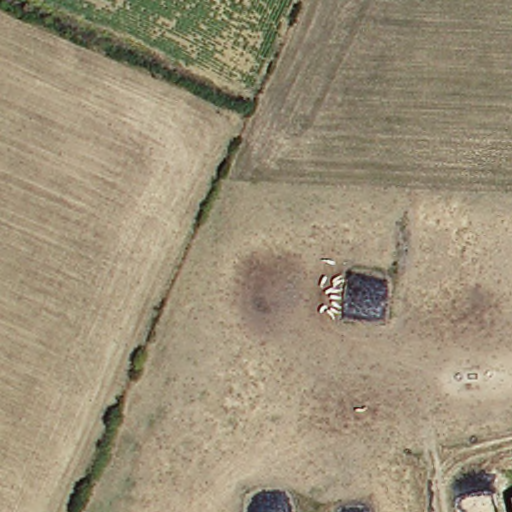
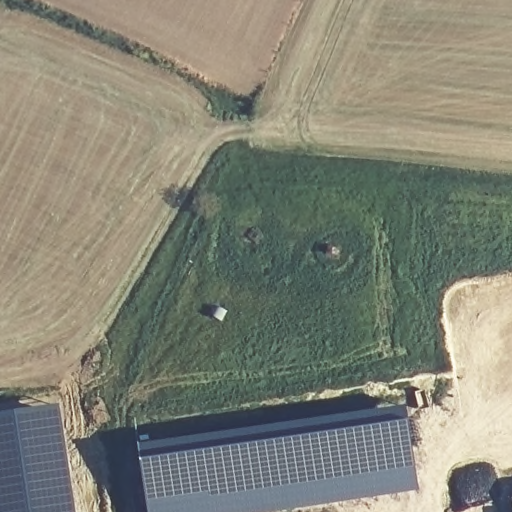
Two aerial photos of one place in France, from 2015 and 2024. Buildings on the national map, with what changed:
new [(59,404),(76,512),(0,512),(0,414),(59,404)]
new [(405,406),(419,490),(272,512),(149,512),(138,444),(405,406)]
demolished [(512,494),(512,496),(511,494),(512,494)]

